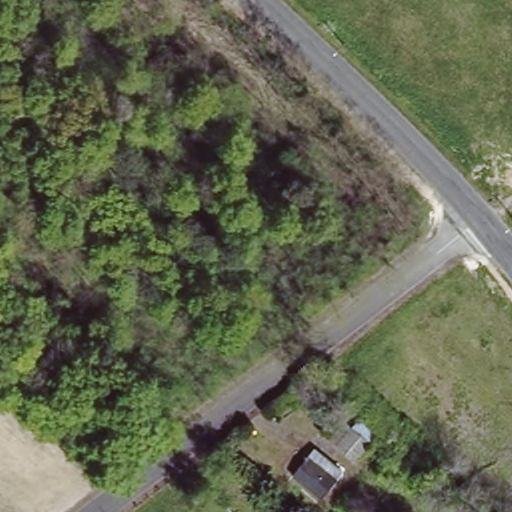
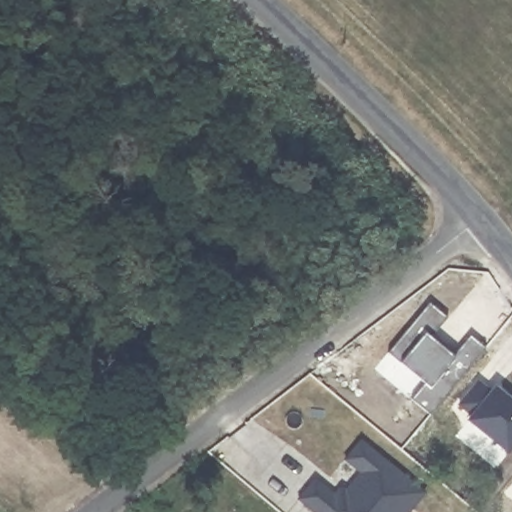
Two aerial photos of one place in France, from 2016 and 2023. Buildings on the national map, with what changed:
new [(428,304),(446,319),(430,339),(437,345),(439,342),(454,354),(469,337),(485,349),(429,415),(410,400),(422,384),(386,354),(428,304)]
new [(475,381),(489,392),(492,387),(512,404),(512,445),(505,453),(465,421),(469,416),(456,405),(475,381)]
demolished [(372,447),(357,466),(338,450),(354,431),(372,447)]
new [(300,499),(315,479),(335,494),(341,487),(347,491),(361,472),(345,460),(361,441),(426,493),(411,512),(315,512),(300,499)]
demolished [(337,479),(320,499),(290,475),(308,454),(315,460),(337,479)]

